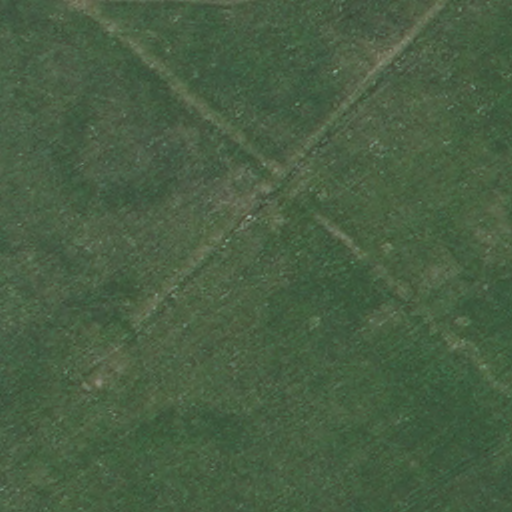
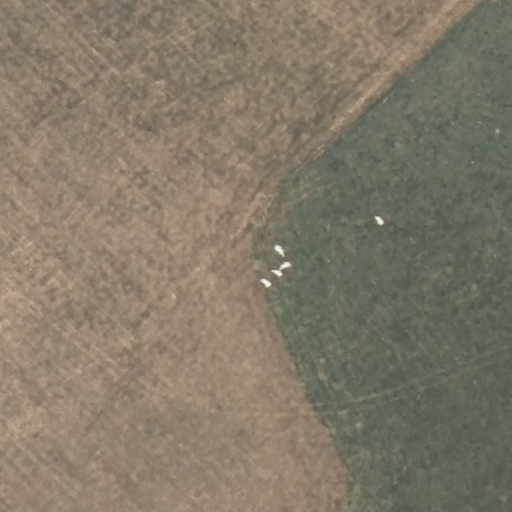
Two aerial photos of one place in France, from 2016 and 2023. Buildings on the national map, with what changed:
[]

